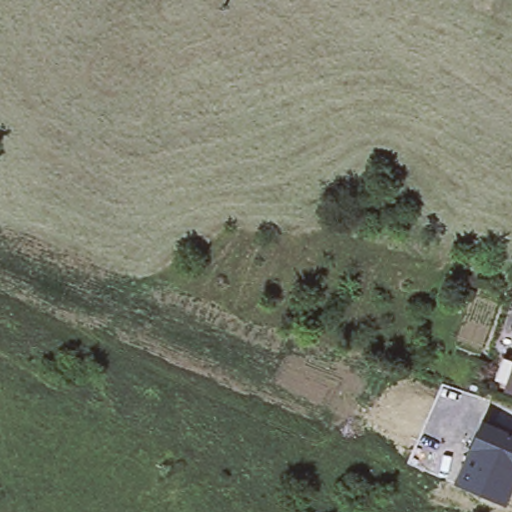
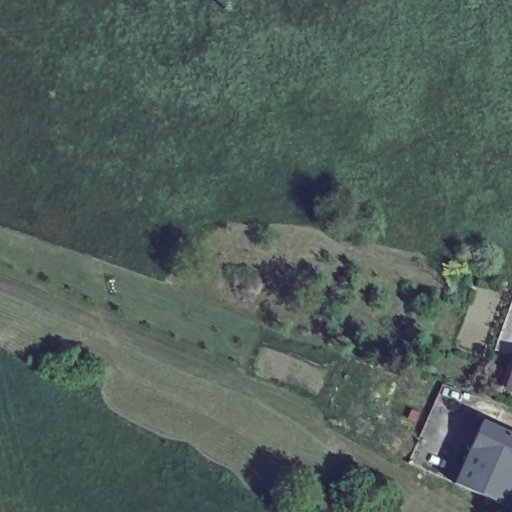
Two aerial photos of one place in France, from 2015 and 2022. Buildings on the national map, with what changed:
unchanged [(506,396),(510,384),(512,378),(512,398),(506,396)]
unchanged [(502,505),(452,482),(480,421),(512,435),(512,483),(502,505)]

